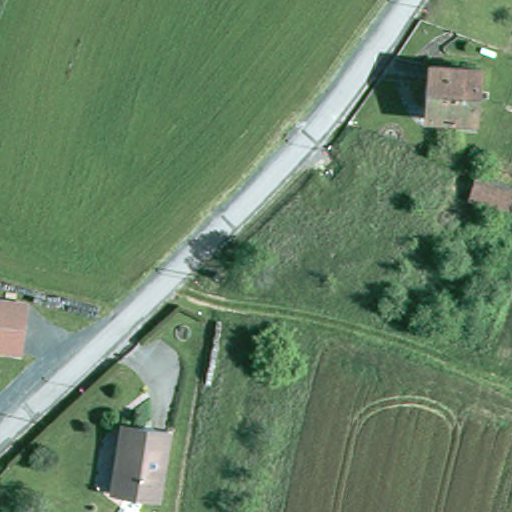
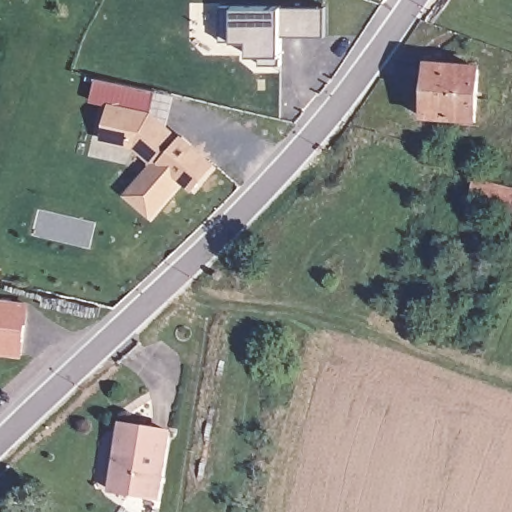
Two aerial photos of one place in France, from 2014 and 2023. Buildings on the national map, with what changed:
new [(233,7),(280,7),(325,6),(325,35),(280,34),(280,54),(280,63),(260,63),(260,53),(247,52),(247,39),(232,38),(220,40),(220,6),(233,7)]
unchanged [(419,120),(425,69),(473,74),(467,125),(419,120)]
new [(152,111),(215,164),(190,192),(180,183),(151,217),(122,192),(149,162),(134,148),(99,140),(107,102),(152,111)]
unchanged [(23,358),(0,356),(0,299),(29,301),(23,358)]
unchanged [(155,496),(111,489),(117,448),(120,421),(127,422),(165,428),(155,496)]

